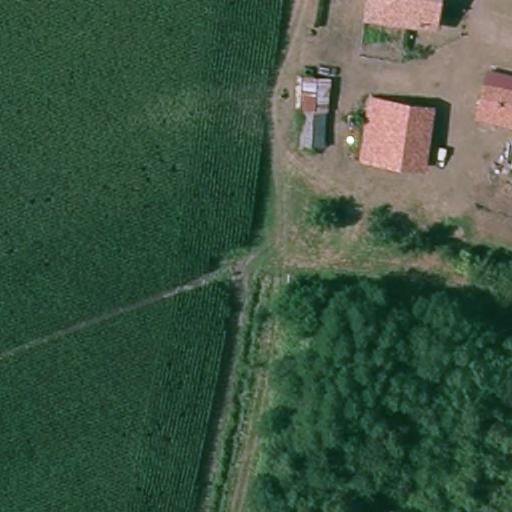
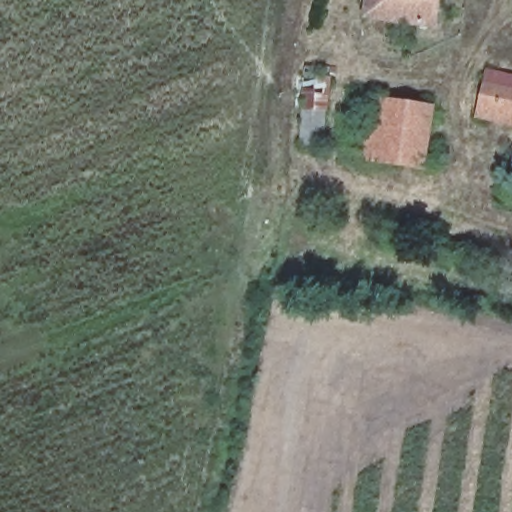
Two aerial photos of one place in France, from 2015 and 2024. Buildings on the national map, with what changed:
unchanged [(439,35),(413,33),(415,20),(370,16),(372,0),(442,0),(439,35)]
unchanged [(491,66),(512,71),(512,126),(479,118),(491,66)]
unchanged [(365,157),(372,102),(414,105),(408,163),(365,157)]
unchanged [(433,107),(427,165),(408,163),(414,105),(433,107)]
unchanged [(512,160),(512,174),(508,173),(512,160)]

